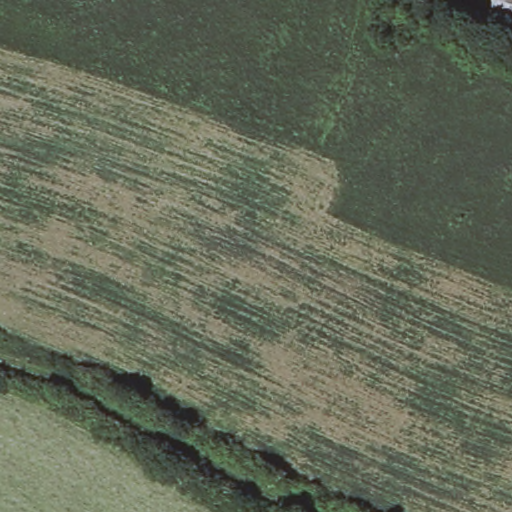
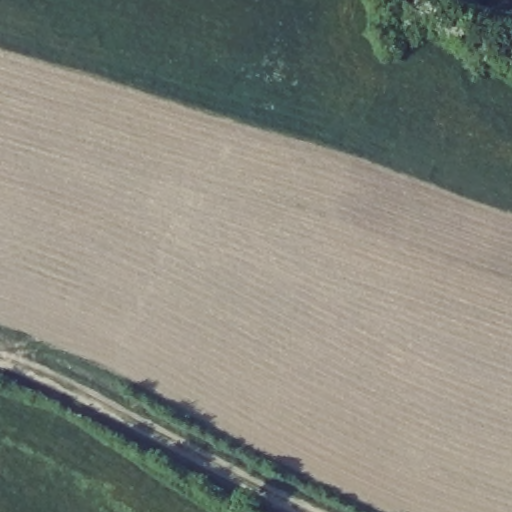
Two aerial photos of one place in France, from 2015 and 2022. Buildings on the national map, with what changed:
unchanged [(486,17),(491,0),(512,0),(512,28),(486,17)]

